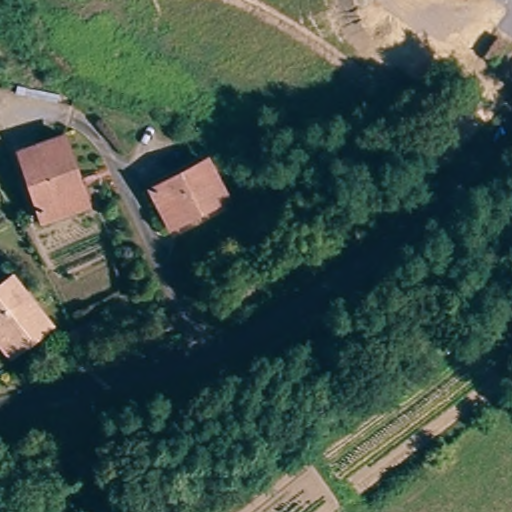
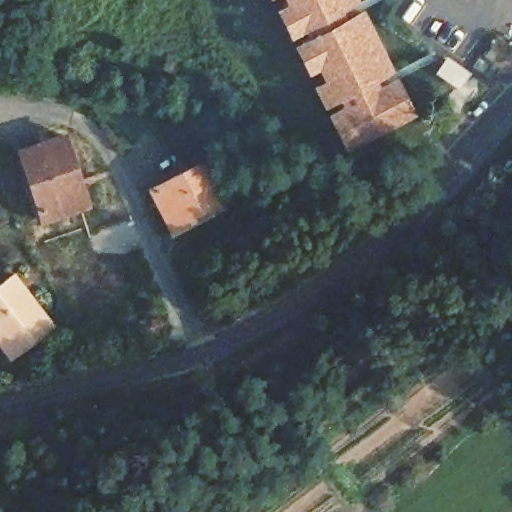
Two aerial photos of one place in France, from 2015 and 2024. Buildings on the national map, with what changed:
new [(335,108),(338,106),(332,93),(329,95),(317,101),(309,84),(320,78),(311,61),(300,67),(288,44),(299,39),(303,37),(296,24),(293,26),(281,32),(270,9),(281,4),(279,0),(343,0),(332,5),(339,18),(354,10),(384,66),(368,74),(375,87),(390,79),(405,109),(350,137),(341,142),(326,113),(335,108)]
unchanged [(84,205),(41,219),(19,151),(63,137),(84,205)]
unchanged [(159,204),(152,190),(206,161),(225,197),(175,224),(171,226),(159,204)]
unchanged [(43,325),(7,354),(0,346),(0,282),(5,278),(43,325)]

